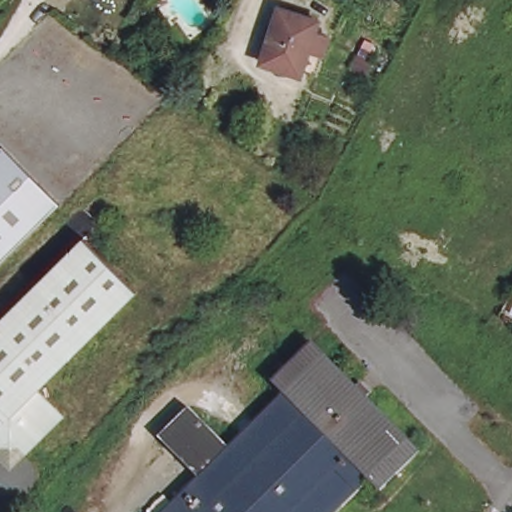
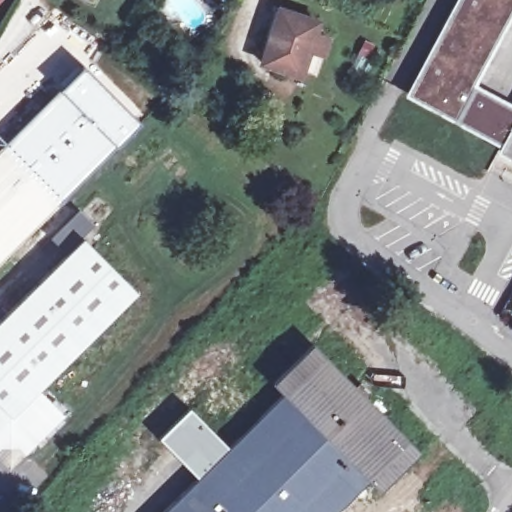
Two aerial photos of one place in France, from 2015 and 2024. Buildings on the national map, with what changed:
new [(512,102),(512,160),(497,152),(500,145),(402,95),(454,0),(512,0),(512,14),(476,84),(512,102)]
unchanged [(297,65),(295,70),(256,57),(262,35),(266,36),(275,10),(311,20),(310,26),(324,31),(317,50),(311,70),(297,65)]
new [(56,75),(108,130),(54,185),(1,131),(56,75)]
unchanged [(60,200),(32,229),(0,260),(0,145),(2,144),(60,200)]
unchanged [(0,315),(79,235),(133,290),(35,387),(64,417),(29,451),(12,468),(0,456),(0,315)]
unchanged [(316,341),(424,449),(385,488),(374,477),(339,512),(164,512),(199,475),(162,437),(192,406),(232,447),(287,391),(277,380),(316,341)]

